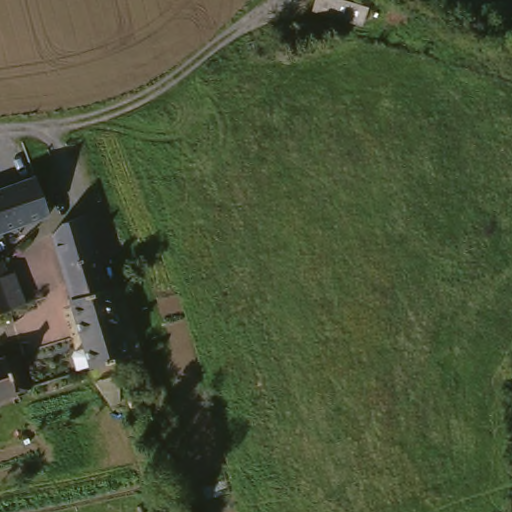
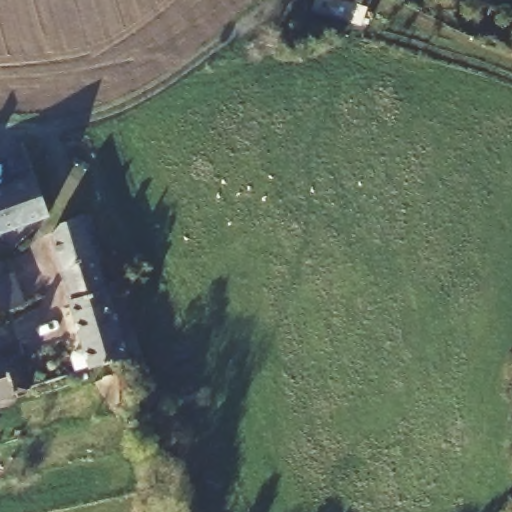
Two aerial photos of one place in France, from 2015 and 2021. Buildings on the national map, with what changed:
unchanged [(315,0),(367,0),(363,25),(311,13),(315,0)]
unchanged [(33,184),(45,219),(0,236),(0,196),(33,184)]
unchanged [(51,232),(61,219),(89,210),(130,357),(91,372),(89,373),(74,378),(69,361),(86,355),(51,232)]
unchanged [(11,282),(17,280),(27,310),(21,312),(0,320),(0,269),(6,268),(11,282)]
unchanged [(18,359),(35,352),(36,355),(38,360),(47,390),(28,396),(0,406),(0,365),(18,359)]

